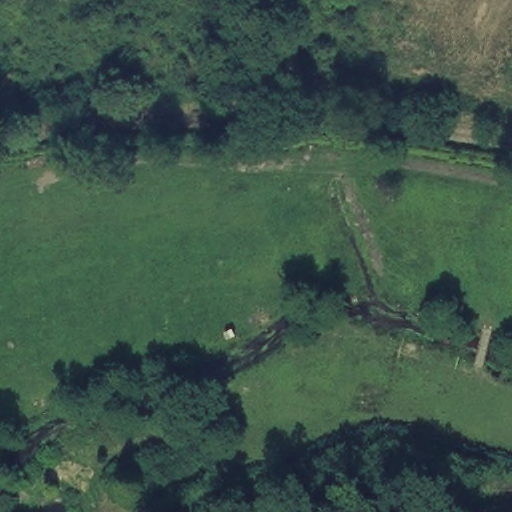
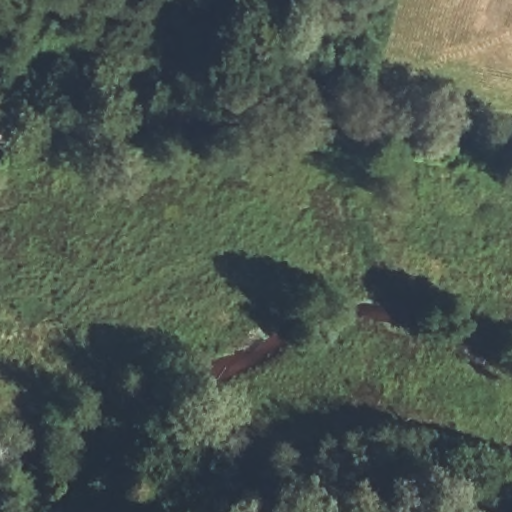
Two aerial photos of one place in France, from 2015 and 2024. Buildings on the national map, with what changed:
[]

